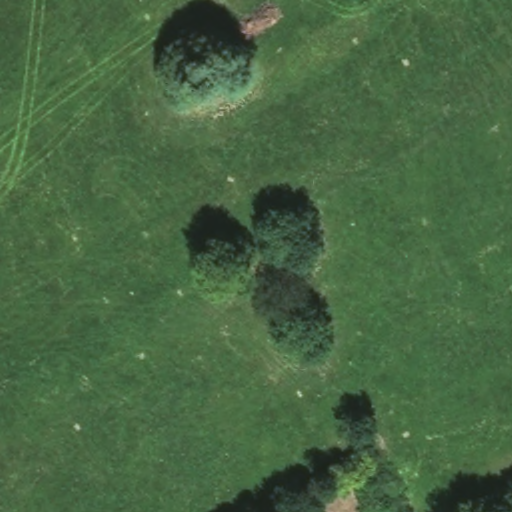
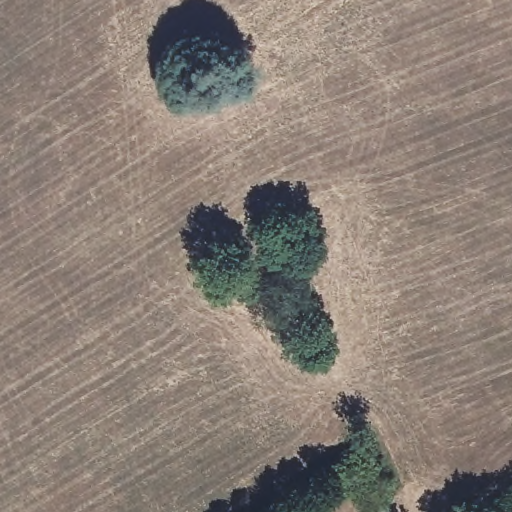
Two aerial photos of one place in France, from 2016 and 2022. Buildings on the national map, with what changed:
[]

